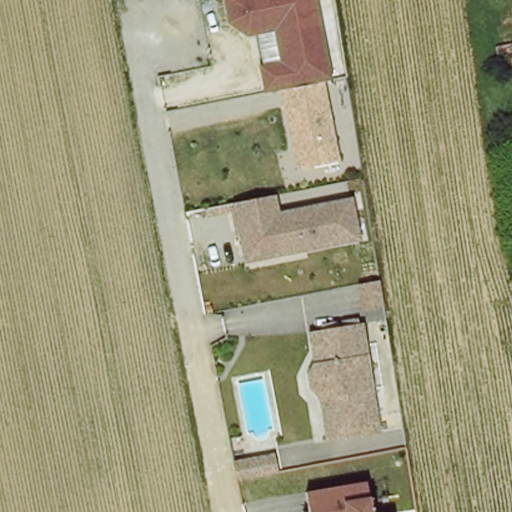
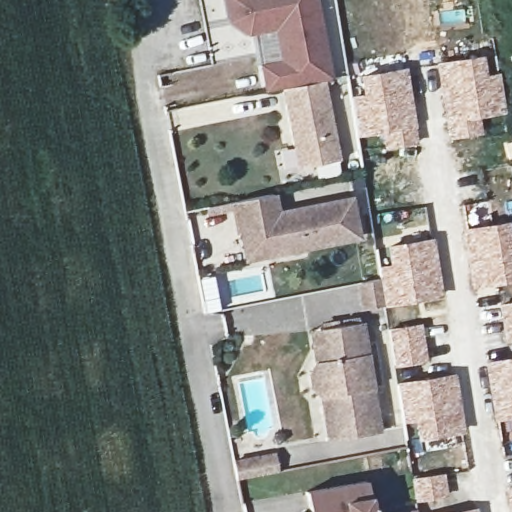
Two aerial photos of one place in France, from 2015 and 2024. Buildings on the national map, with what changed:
unchanged [(323,80),(339,162),(297,169),(281,90),(264,93),(254,36),(248,37),(228,24),(225,0),(317,0),(333,78),(323,80)]
new [(484,55),(487,74),(499,72),(507,114),(481,118),(484,135),(447,140),(436,63),(484,55)]
new [(361,93),(358,75),(407,67),(419,145),(384,151),(381,134),(358,138),(349,95),(361,93)]
unchanged [(279,211),(352,197),(362,242),(246,263),(233,203),(276,194),(279,211)]
new [(471,291),(461,229),(511,220),(512,226),(512,283),(471,291)]
new [(382,278),(386,303),(366,307),(363,282),(382,278)]
new [(512,300),(512,344),(504,346),(498,303),(512,300)]
unchanged [(318,395),(308,386),(306,373),(312,361),(308,329),(316,328),(358,322),(366,376),(360,377),(361,388),(368,387),(374,432),(333,437),(324,439),(318,395)]
new [(422,323),(429,362),(393,368),(387,328),(422,323)]
new [(512,355),(512,430),(505,432),(503,421),(494,423),(484,361),(512,355)]
new [(456,372),(464,433),(413,440),(411,424),(404,426),(396,382),(456,372)]
unchanged [(236,460),(264,454),(274,453),(277,452),(280,470),(278,471),(268,473),(239,478),(236,460)]
new [(444,472),(449,497),(414,503),(411,477),(444,472)]
unchanged [(370,512),(306,512),(303,490),(319,488),(364,479),(370,512)]
new [(512,484),(512,512),(508,512),(504,486),(512,484)]

